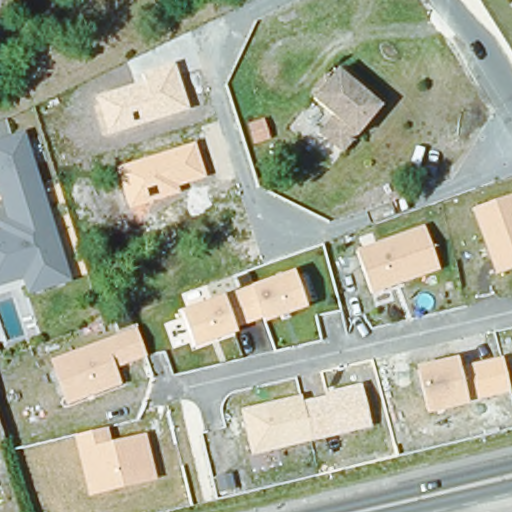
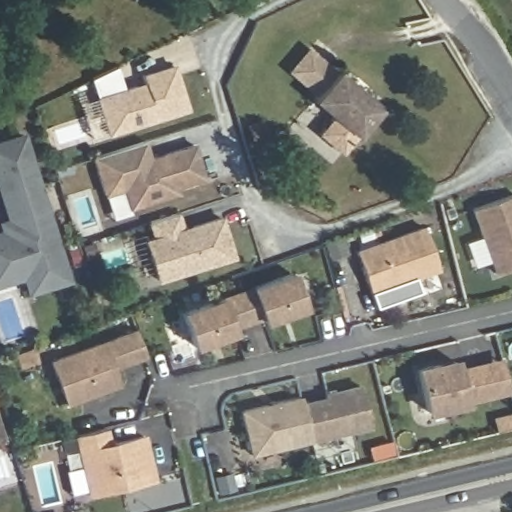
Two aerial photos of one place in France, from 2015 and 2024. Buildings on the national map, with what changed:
unchanged [(512,3),(512,4),(511,4),(512,3)]
new [(307,46),(340,72),(320,97),(288,71),(307,46)]
unchanged [(188,111),(106,136),(95,98),(144,82),(141,73),(174,64),(188,111)]
unchanged [(320,97),(340,72),(340,71),(385,105),(348,153),(324,135),(338,117),(317,101),(320,97)]
unchanged [(22,280),(0,286),(0,232),(1,231),(0,223),(8,219),(0,195),(0,140),(25,132),(72,282),(28,296),(22,280)]
new [(117,166),(124,190),(103,196),(91,157),(145,141),(150,156),(117,166)]
unchanged [(205,177),(178,185),(180,193),(129,209),(117,166),(196,142),(205,177)]
unchanged [(474,208),(512,195),(512,269),(496,274),(474,208)]
new [(235,258),(157,282),(144,240),(152,237),(147,222),(179,212),(184,227),(221,215),(235,258)]
unchanged [(373,291),(359,249),(426,227),(440,268),(373,291)]
unchanged [(307,308),(263,323),(261,318),(234,326),(237,333),(194,348),(181,311),(225,294),(294,270),(307,308)]
unchanged [(147,355),(115,366),(122,385),(62,406),(47,360),(135,326),(147,355)]
unchanged [(510,393),(425,415),(415,367),(458,356),(461,365),(500,356),(510,393)]
unchanged [(372,425),(251,453),(241,408),(300,395),(303,401),(323,396),(322,392),(363,384),(372,425)]
unchanged [(157,480),(87,497),(72,436),(108,427),(112,443),(147,434),(157,480)]

